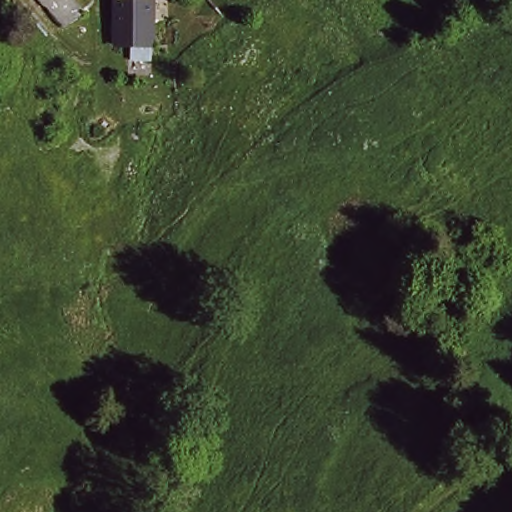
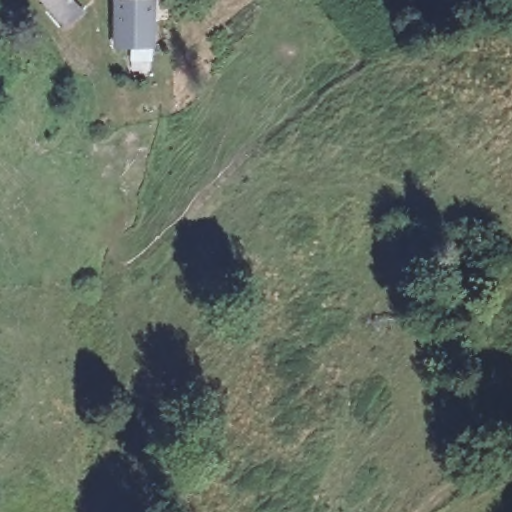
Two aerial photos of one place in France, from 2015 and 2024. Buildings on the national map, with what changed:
unchanged [(88,13),(47,35),(30,0),(82,0),(88,13)]
unchanged [(118,2),(153,2),(153,42),(115,43),(118,2)]

